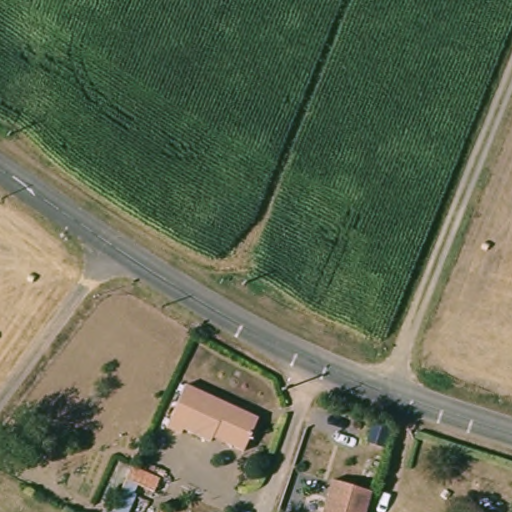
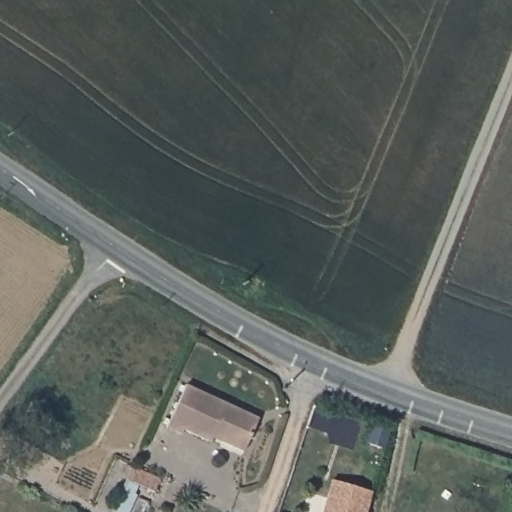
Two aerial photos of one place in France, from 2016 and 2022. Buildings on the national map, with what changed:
unchanged [(255,421),(239,452),(210,439),(207,443),(180,431),(178,436),(162,428),(181,387),(255,421)]
unchanged [(157,480),(151,495),(135,487),(131,496),(134,497),(127,512),(111,512),(130,468),(157,480)]
unchanged [(370,493),(365,512),(323,512),(330,482),(370,493)]

